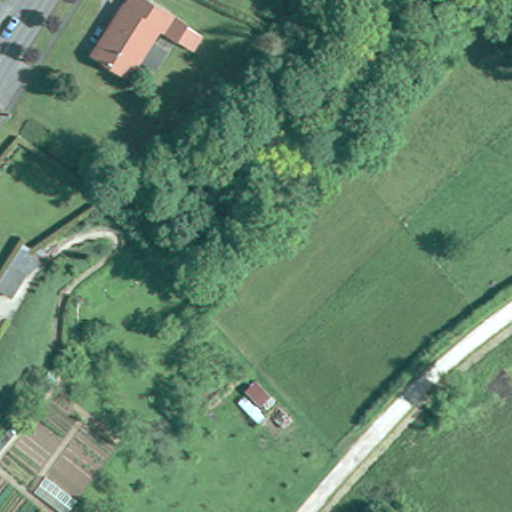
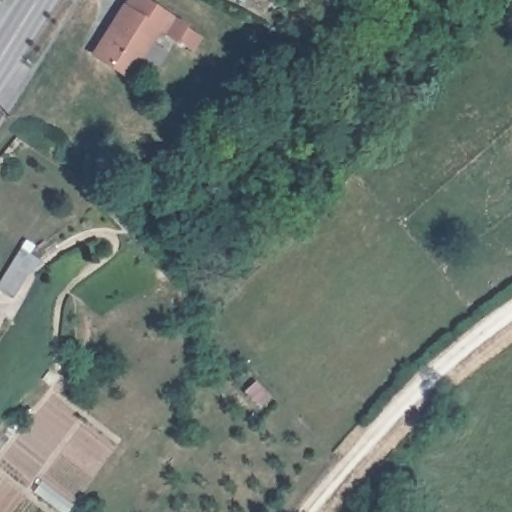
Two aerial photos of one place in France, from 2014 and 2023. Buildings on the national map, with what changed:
unchanged [(158,23),(129,70),(95,47),(125,0),(154,0),(186,20),(177,35),(158,23)]

